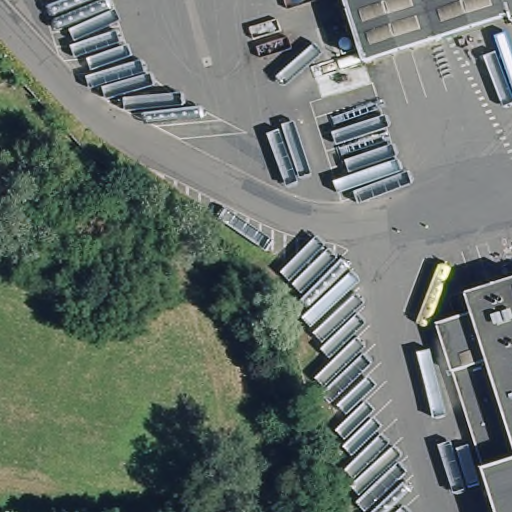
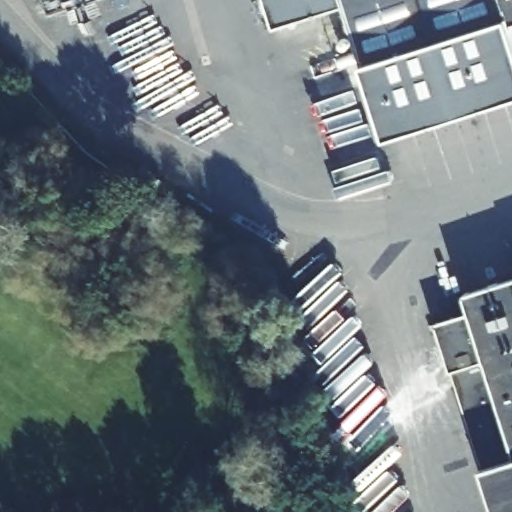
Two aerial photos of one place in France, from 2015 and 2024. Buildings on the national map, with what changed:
new [(268,0),(342,0),(344,4),(276,26),(268,0)]
unchanged [(342,0),(512,0),(512,22),(364,66),(342,0)]
new [(367,65),(512,22),(512,95),(390,133),(367,65)]
unchanged [(476,322),(470,304),(512,290),(512,512),(498,512),(440,334),(476,322)]

